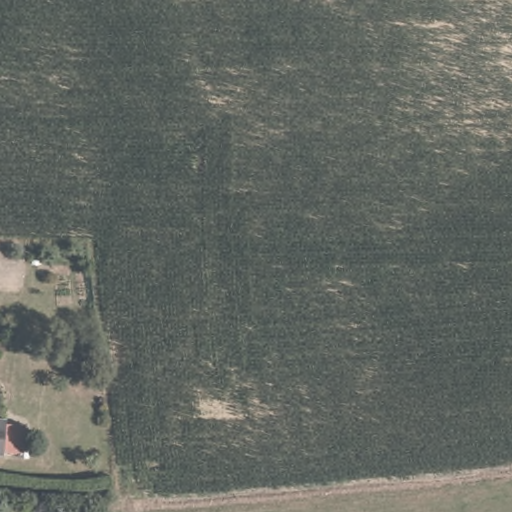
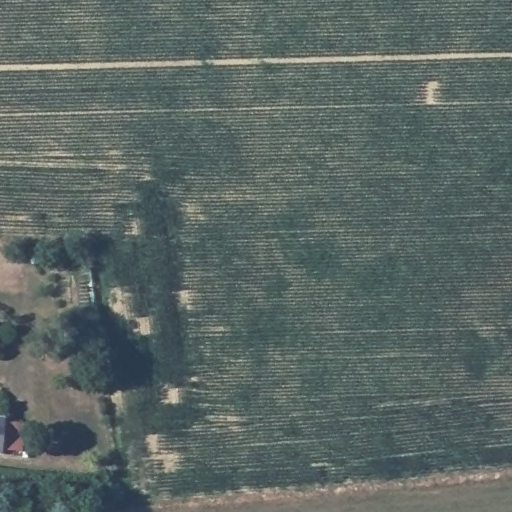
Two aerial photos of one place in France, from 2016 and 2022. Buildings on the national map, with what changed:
unchanged [(4,450),(0,450),(0,413),(9,415),(4,450)]

